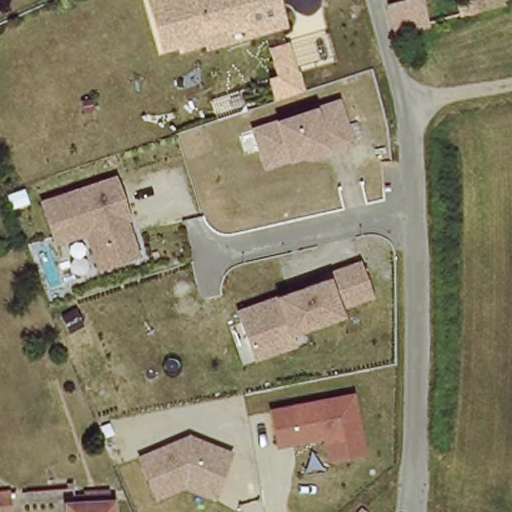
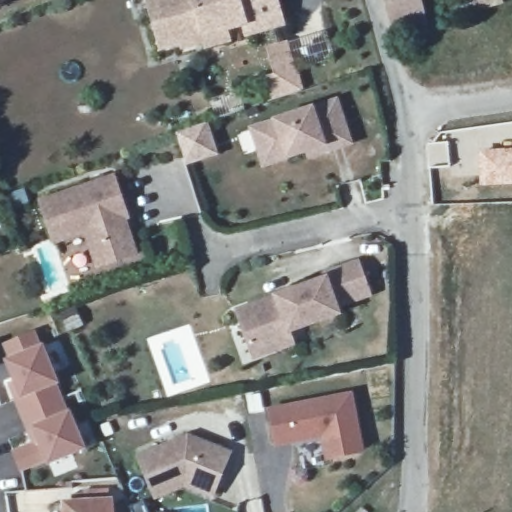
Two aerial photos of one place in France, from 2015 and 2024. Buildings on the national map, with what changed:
unchanged [(213,46),(190,53),(188,49),(168,54),(153,1),(156,0),(280,0),(289,30),(253,40),(251,30),(232,36),(234,46),(214,51),(213,46)]
unchanged [(392,0),(424,0),(430,21),(400,29),(392,0)]
unchanged [(466,15),(461,0),(507,0),(508,3),(466,15)]
new [(276,70),(269,47),(288,42),(289,44),(294,65),(303,91),(274,100),(269,80),(278,77),(276,70)]
unchanged [(354,148),(311,161),(309,157),(264,171),(249,127),(275,120),(318,107),(339,99),(354,148)]
new [(448,140),(451,166),(428,169),(425,142),(448,140)]
new [(512,147),(512,185),(479,186),(477,148),(512,147)]
unchanged [(99,270),(85,236),(55,245),(40,201),(117,175),(133,220),(129,221),(141,255),(99,270)]
unchanged [(375,299),(340,311),(341,316),(294,333),(298,345),(255,360),(236,309),(276,295),(326,278),(324,273),(359,261),(375,299)]
new [(23,475),(14,451),(33,444),(9,387),(15,385),(6,360),(11,357),(5,343),(36,330),(45,345),(89,451),(23,475)]
unchanged [(354,392),(369,453),(327,461),(323,441),(279,448),(273,407),(354,392)]
unchanged [(218,500),(186,489),(157,500),(139,456),(191,435),(233,452),(218,500)]
unchanged [(78,488),(72,488),(71,482),(77,481),(78,488)]
unchanged [(70,505),(78,505),(78,496),(89,496),(89,495),(90,491),(113,490),(114,502),(117,502),(117,512),(71,512),(70,505)]
demolished [(8,512),(0,512),(0,493),(6,492),(8,512)]

